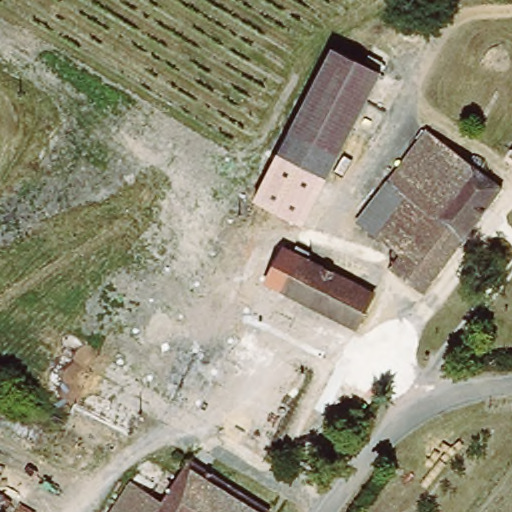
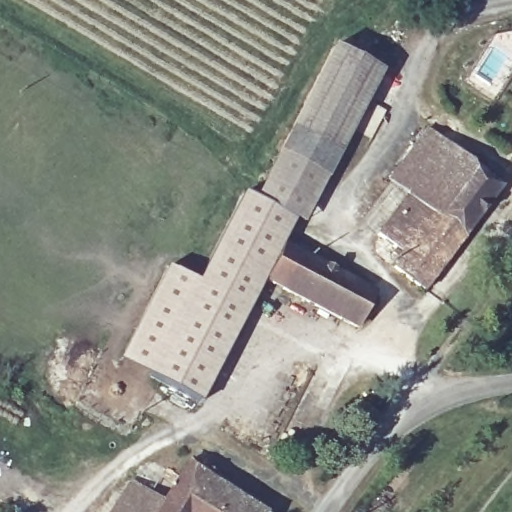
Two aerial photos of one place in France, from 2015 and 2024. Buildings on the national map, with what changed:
unchanged [(333,56),(381,79),(296,230),(252,205),(333,56)]
unchanged [(430,127),(501,186),(442,263),(415,239),(402,253),(376,232),(407,192),(390,177),(430,127)]
new [(200,401),(117,361),(166,266),(196,281),(241,193),(255,201),(252,205),(290,226),(200,401)]
unchanged [(421,291),(392,267),(402,253),(415,239),(442,263),(421,291)]
unchanged [(372,296),(353,329),(267,283),(283,251),(289,253),(372,296)]
unchanged [(164,504),(191,461),(268,512),(115,512),(134,485),(164,504)]

